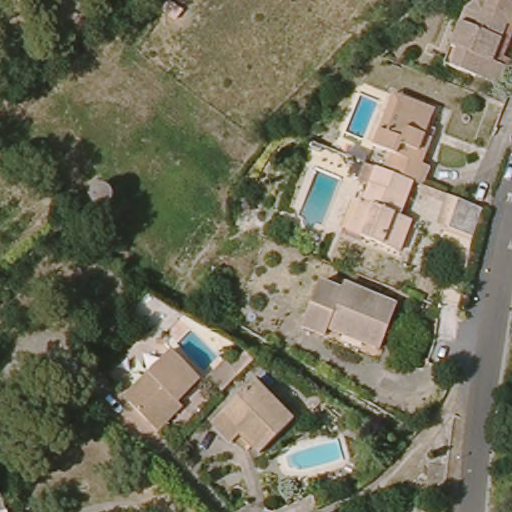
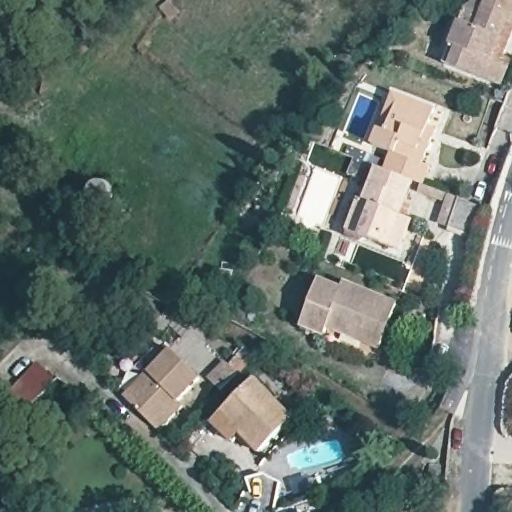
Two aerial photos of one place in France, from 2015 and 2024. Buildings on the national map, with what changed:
unchanged [(508,87),(452,65),(468,25),(473,12),(485,5),(492,6),(494,0),(505,0),(512,3),(512,49),(509,57),(512,59),(512,77),(508,87)]
unchanged [(424,181),(415,179),(378,164),(369,160),(375,143),(397,89),(419,97),(436,105),(430,121),(437,124),(433,134),(423,160),(431,163),(424,181)]
unchanged [(378,164),(415,179),(401,212),(411,216),(398,251),(361,237),(349,232),(362,199),(365,199),(378,164)]
unchanged [(478,202),(468,232),(443,223),(455,193),(478,202)]
unchanged [(326,333),(306,325),(323,283),(344,290),(346,286),(400,306),(383,350),(339,333),(328,330),(326,333)]
unchanged [(146,371),(170,346),(199,374),(176,401),(179,405),(156,429),(128,401),(151,377),(146,371)]
unchanged [(295,422),(262,455),(256,451),(243,438),(239,443),(231,449),(213,431),(257,387),(295,422)]

